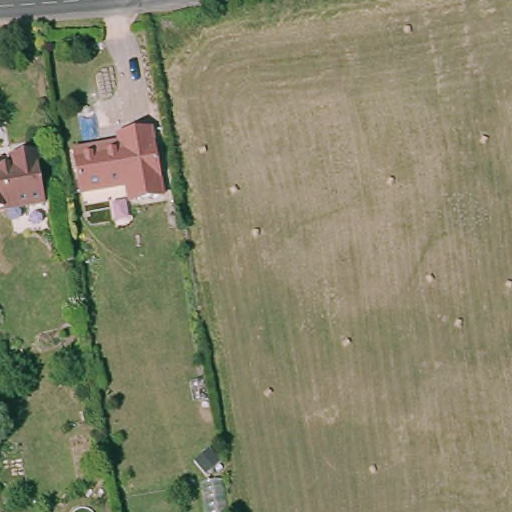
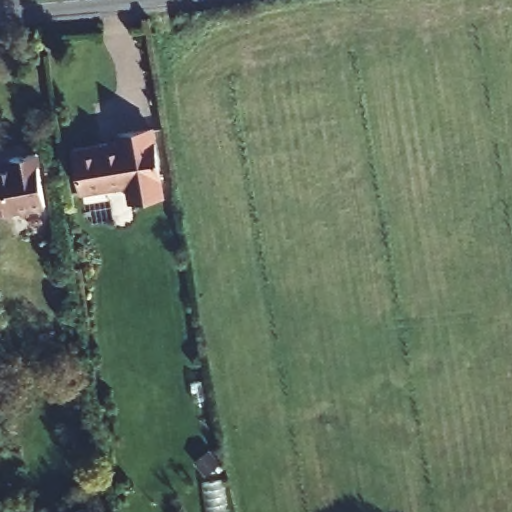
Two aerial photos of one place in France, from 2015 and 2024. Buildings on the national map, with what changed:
unchanged [(144,144),(143,150),(163,148),(168,176),(152,178),(152,185),(92,190),(88,152),(128,147),(144,144)]
unchanged [(25,158),(23,147),(48,145),(53,201),(0,205),(0,161),(25,158)]

